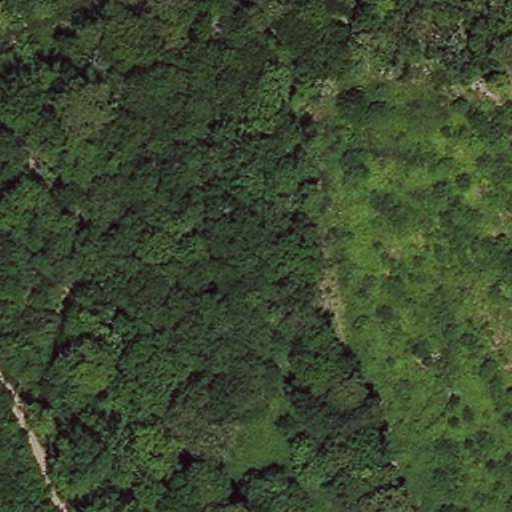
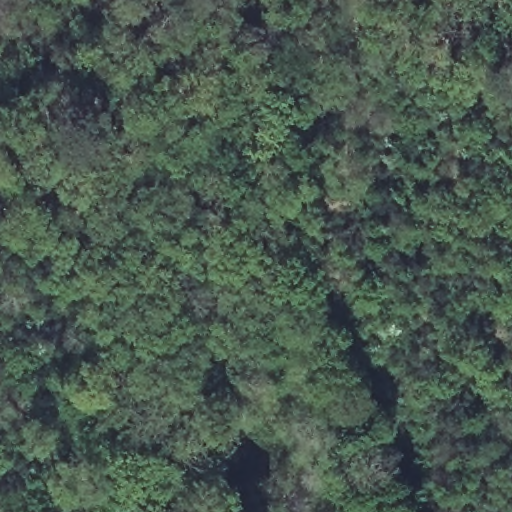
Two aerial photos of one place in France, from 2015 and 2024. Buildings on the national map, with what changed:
[]

